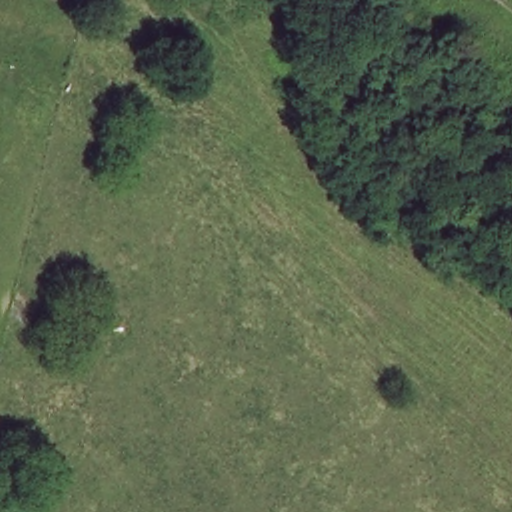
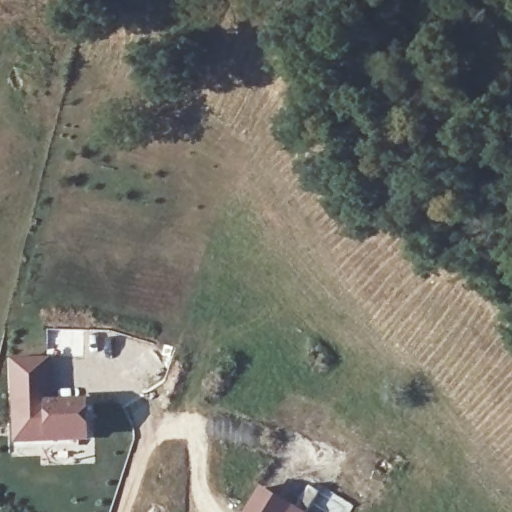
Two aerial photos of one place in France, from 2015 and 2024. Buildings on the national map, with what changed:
new [(47,358),(48,403),(84,402),(85,437),(14,438),(12,358),(47,358)]
new [(299,512),(244,512),(260,487),(299,512)]

